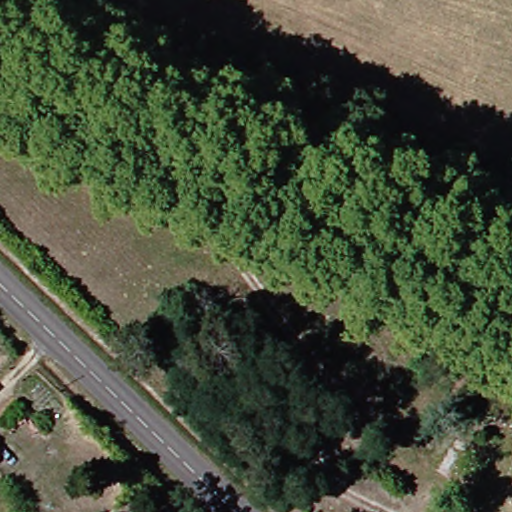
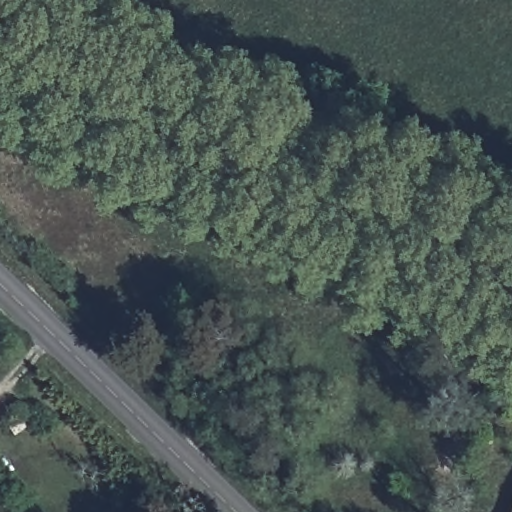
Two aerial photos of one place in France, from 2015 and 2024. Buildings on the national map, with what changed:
unchanged [(512,512),(504,512),(512,493),(512,512)]

